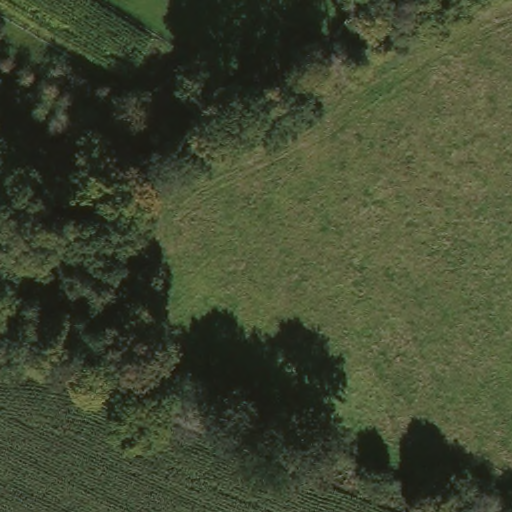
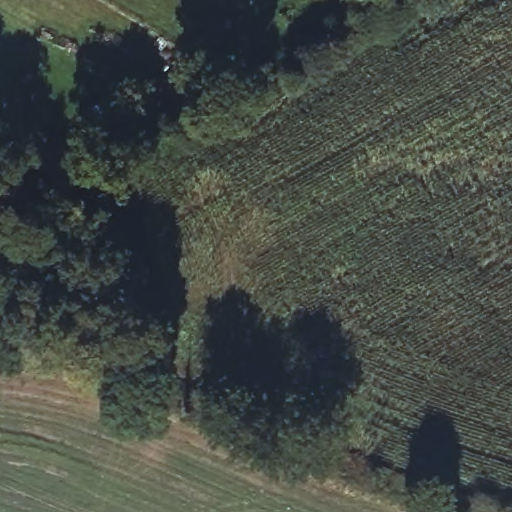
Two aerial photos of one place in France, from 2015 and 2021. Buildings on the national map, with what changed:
unchanged [(204,93),(147,124),(133,96),(190,67),(204,93)]

